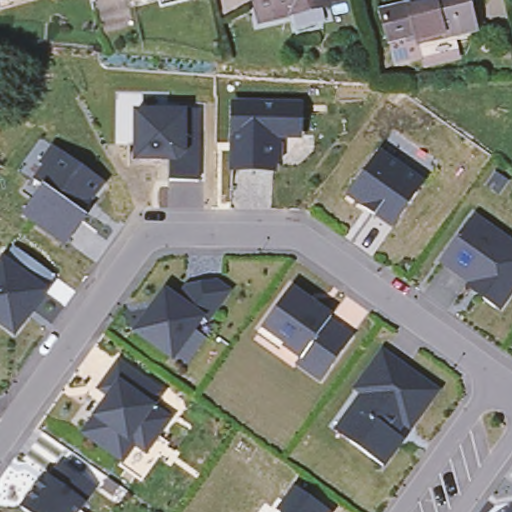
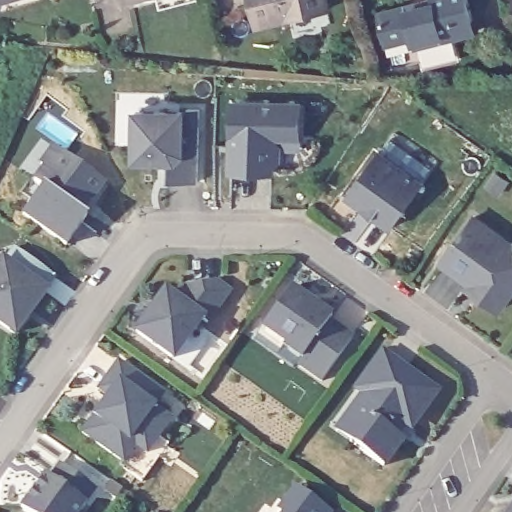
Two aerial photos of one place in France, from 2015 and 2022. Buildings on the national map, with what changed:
unchanged [(288,6),(254,15),(250,0),(323,0),(326,12),(291,20),(288,6)]
unchanged [(416,35),(414,36),(411,22),(385,30),(387,34),(384,35),(375,4),(388,0),(467,0),(472,21),(449,27),(453,40),(419,49),(416,35)]
unchanged [(173,95),(173,115),(188,115),(191,111),(203,111),(202,183),(174,183),(174,162),(140,162),(140,147),(120,147),(120,94),(173,95)]
unchanged [(234,102),(299,103),(299,134),(274,133),(274,140),(279,144),(279,156),(274,161),(273,168),(233,167),(234,102)]
unchanged [(379,153),(424,185),(393,229),(374,216),(378,211),(366,203),(363,208),(348,197),(379,153)]
unchanged [(82,215),(86,219),(65,247),(23,217),(43,189),(34,183),(44,168),(53,175),(65,157),(104,185),(91,202),(84,211),(82,215)]
unchanged [(442,263),(474,219),(512,246),(512,297),(511,296),(499,312),(483,300),(469,290),(473,285),(442,263)]
unchanged [(0,335),(0,267),(9,255),(49,283),(39,297),(40,299),(27,317),(22,323),(9,341),(0,335)]
unchanged [(177,303),(187,289),(214,285),(228,295),(206,326),(201,322),(172,361),(136,335),(151,315),(155,308),(165,295),(177,303)]
unchanged [(329,323),(353,340),(321,384),(296,366),(300,361),(283,349),(285,346),(263,330),(291,290),(303,298),(320,310),(332,319),(329,323)]
unchanged [(345,422),(364,396),(356,391),(383,355),(408,372),(407,373),(416,380),(417,379),(433,390),(432,396),(429,404),(426,409),(422,415),(418,419),(412,424),(406,427),(404,425),(396,436),(403,442),(384,468),(350,445),(336,435),(345,422)]
unchanged [(83,431),(103,402),(109,395),(98,387),(118,360),(163,391),(154,405),(171,416),(146,451),(136,443),(123,460),(83,431)]
unchanged [(76,512),(30,512),(21,505),(26,498),(23,496),(33,482),(36,485),(40,478),(45,471),(50,475),(60,461),(95,485),(80,506),(76,512)]
unchanged [(296,489),(331,512),(279,512),(296,489)]

